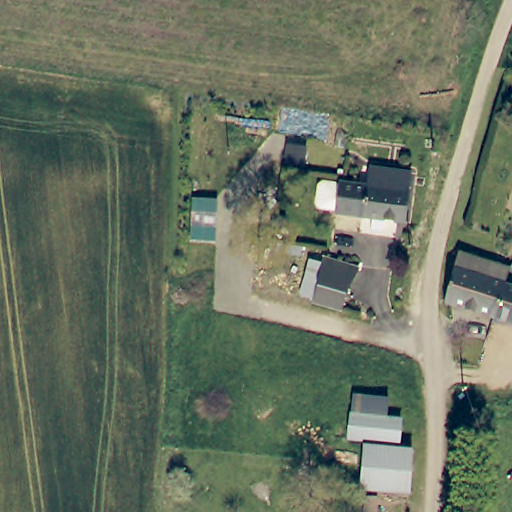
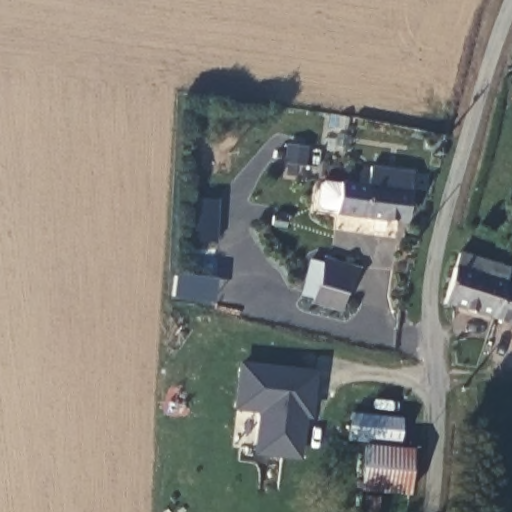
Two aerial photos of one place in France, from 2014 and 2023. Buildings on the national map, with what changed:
unchanged [(307,163),(288,161),(290,145),(309,147),(307,163)]
unchanged [(320,207),(322,189),(326,185),(342,187),(342,185),(344,186),(369,189),(372,169),(415,174),(412,195),(408,224),(339,215),(339,213),(338,213),(323,211),(320,207)]
new [(197,194),(222,196),(219,238),(194,236),(197,194)]
unchanged [(481,259),(467,311),(442,303),(441,301),(456,251),(481,259)]
unchanged [(508,267),(503,284),(493,318),(467,311),(481,259),(508,267)]
unchanged [(349,295),(344,313),(315,304),(319,288),(307,285),(312,266),(324,269),(325,265),(361,276),(349,295)]
unchanged [(512,286),(512,324),(493,318),(503,284),(507,284),(512,286)]
new [(315,370),(311,418),(303,417),(298,460),(253,456),(257,414),(230,410),(234,362),(315,370)]
unchanged [(405,418),(399,441),(365,435),(349,432),(353,409),(368,412),(387,415),(405,418)]
unchanged [(408,489),(396,488),(367,484),(359,483),(362,443),(412,448),(408,489)]
unchanged [(396,488),(393,512),(364,512),(367,484),(396,488)]

